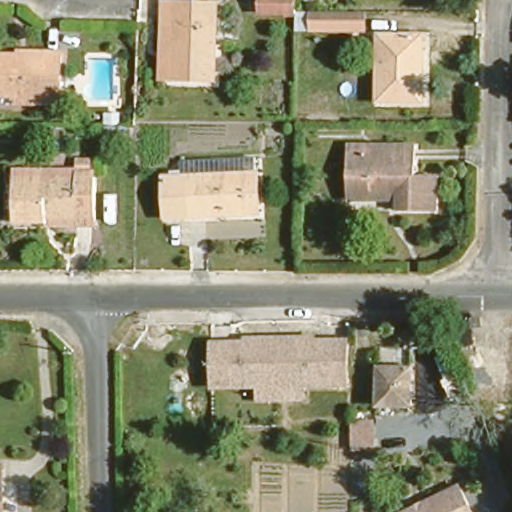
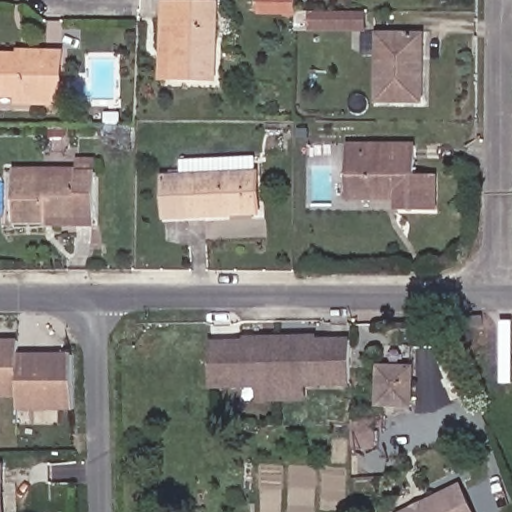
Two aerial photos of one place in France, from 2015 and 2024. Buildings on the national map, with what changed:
unchanged [(208,1),(206,80),(161,79),(163,23),(154,23),(155,0),(208,1)]
unchanged [(260,3),(260,0),(296,0),(296,1),(296,4),(260,3)]
unchanged [(373,94),(374,34),(320,35),(306,35),(306,19),(306,16),(320,16),(374,16),(374,31),(418,32),(417,95),(373,94)]
unchanged [(45,80),(43,102),(17,101),(17,93),(0,93),(0,50),(20,50),(20,46),(48,48),(61,48),(61,80),(45,80)]
unchanged [(410,170),(431,170),(430,206),(394,206),(394,194),(342,194),(342,173),(342,142),(358,142),(411,143),(410,170)]
unchanged [(180,174),(178,157),(251,153),(251,169),(180,174)]
unchanged [(44,220),(44,216),(11,215),(11,171),(72,171),(73,162),(93,162),(93,209),(93,220),(44,220)]
unchanged [(253,209),(160,214),(159,175),(180,174),(251,169),(253,209)]
new [(19,354),(71,354),(73,412),(17,411),(18,398),(0,399),(0,339),(19,339),(19,354)]
unchanged [(211,387),(211,343),(354,342),(354,387),(211,387)]
unchanged [(375,366),(412,366),(411,404),(375,404),(375,366)]
unchanged [(352,453),(353,419),(383,421),(381,451),(352,453)]
unchanged [(17,512),(0,512),(0,457),(16,456),(17,512)]
unchanged [(474,512),(393,512),(457,479),(474,512)]

